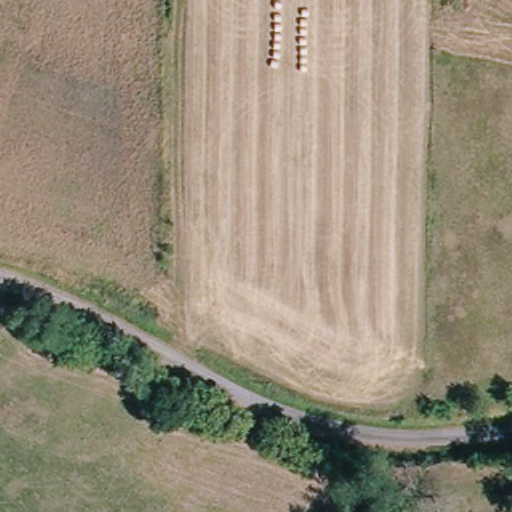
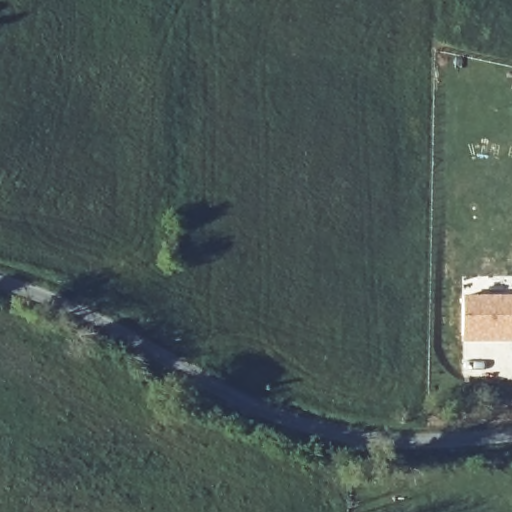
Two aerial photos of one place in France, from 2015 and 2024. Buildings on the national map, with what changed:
new [(461,295),(512,295),(512,340),(462,340),(461,295)]

